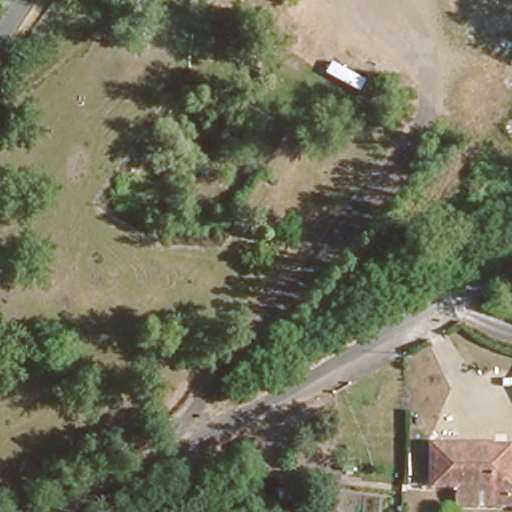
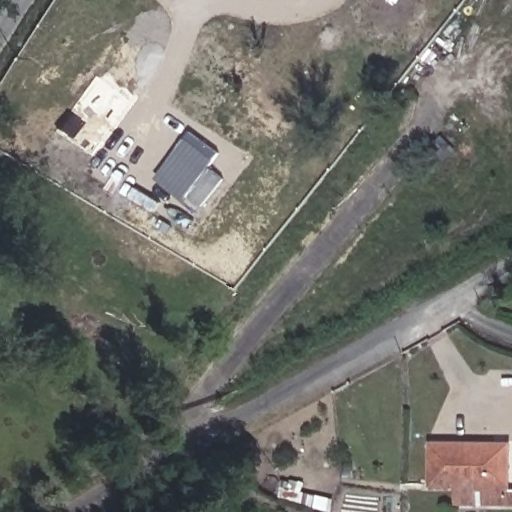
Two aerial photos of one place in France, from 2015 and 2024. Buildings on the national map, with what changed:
unchanged [(320,72),(331,51),(373,73),(358,94),(320,72)]
new [(185,201),(155,179),(192,131),(221,153),(185,201)]
unchanged [(505,444),(505,484),(455,484),(436,484),(428,484),(430,444),(436,444),(505,444)]
unchanged [(453,504),(455,484),(505,484),(503,505),(453,504)]

